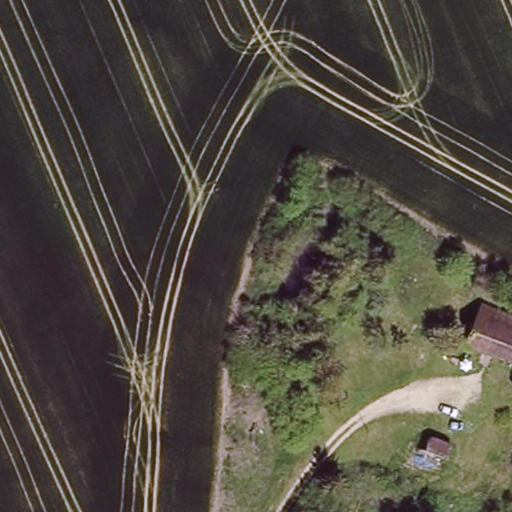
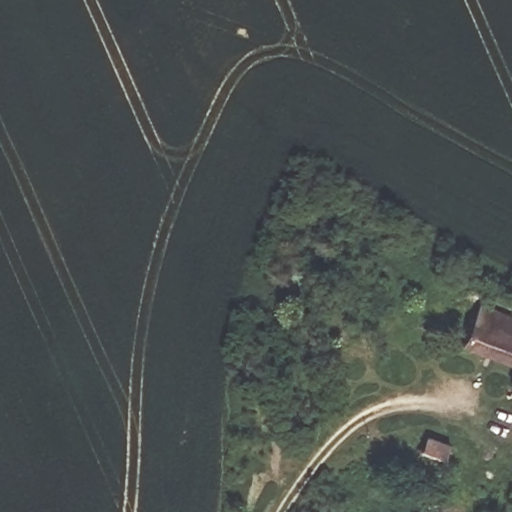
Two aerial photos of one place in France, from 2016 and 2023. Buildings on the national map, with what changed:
unchanged [(462,348),(481,310),(512,321),(512,366),(462,348)]

